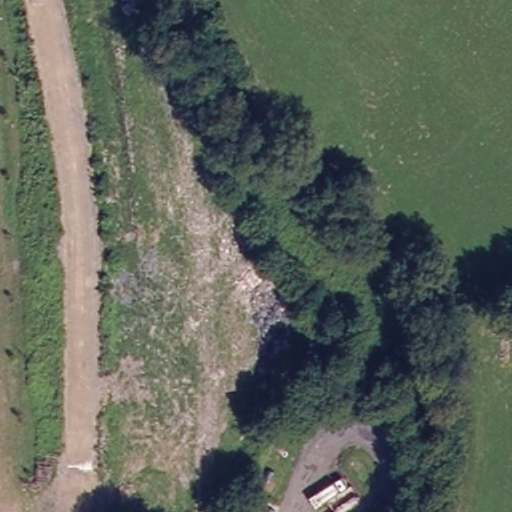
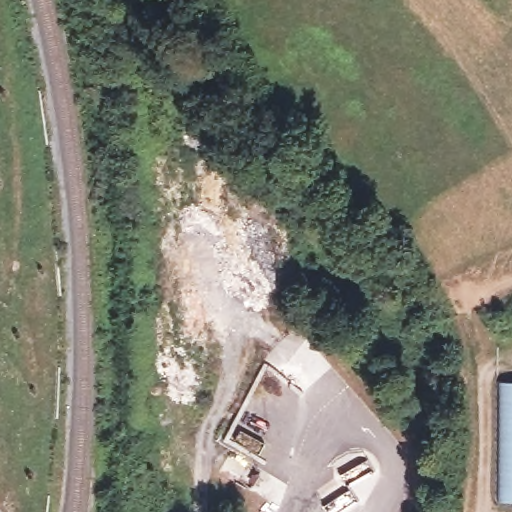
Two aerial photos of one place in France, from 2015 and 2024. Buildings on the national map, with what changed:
new [(512,502),(501,502),(502,381),(512,381),(512,502)]

